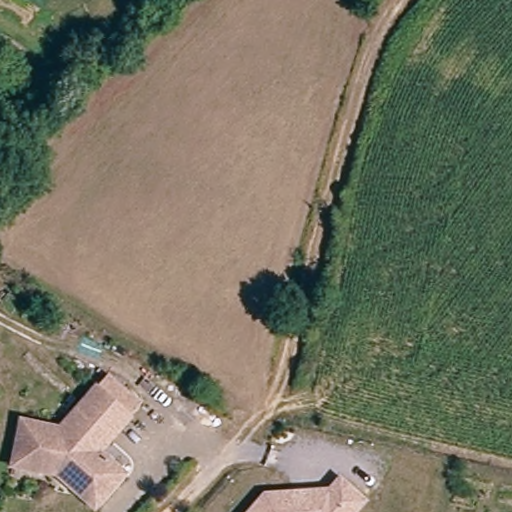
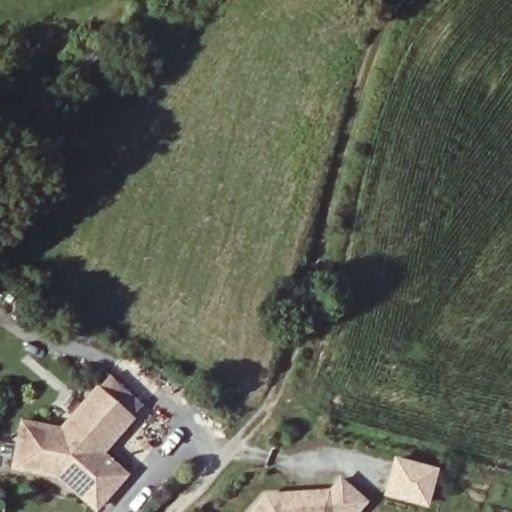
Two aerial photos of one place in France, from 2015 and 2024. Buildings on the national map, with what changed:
unchanged [(60,469),(15,461),(22,417),(64,424),(102,384),(134,416),(103,448),(127,471),(104,495),(95,503),(60,469)]
new [(392,454),(438,466),(428,507),(381,495),(392,454)]
unchanged [(266,489),(327,487),(338,473),(369,502),(361,512),(247,512),(266,489)]

